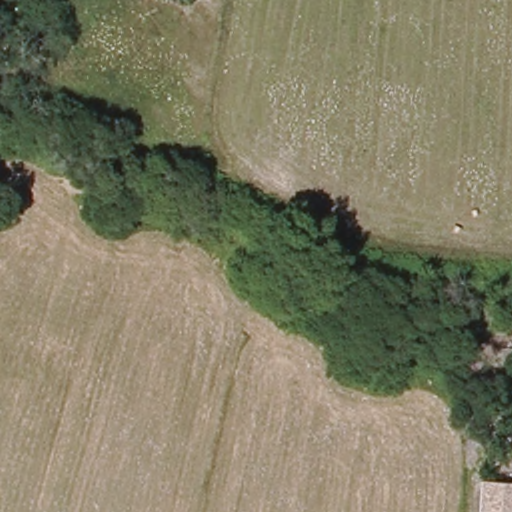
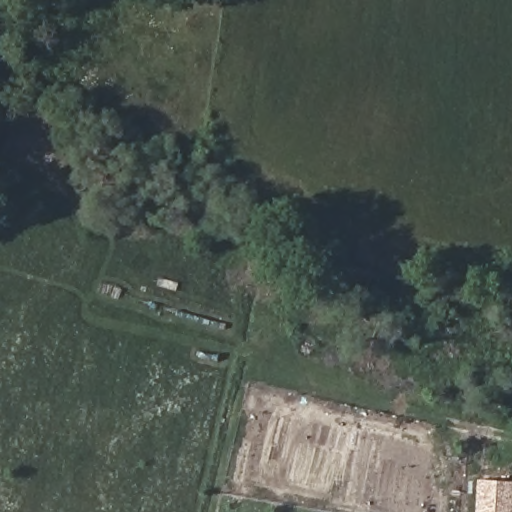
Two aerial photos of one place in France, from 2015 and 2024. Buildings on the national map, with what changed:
unchanged [(480,481),(512,483),(512,512),(477,512),(480,481)]

